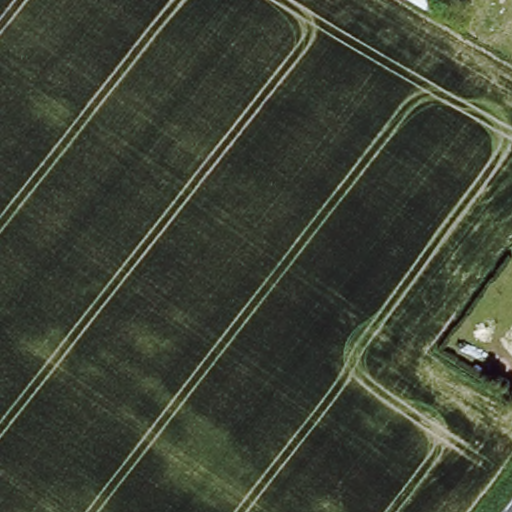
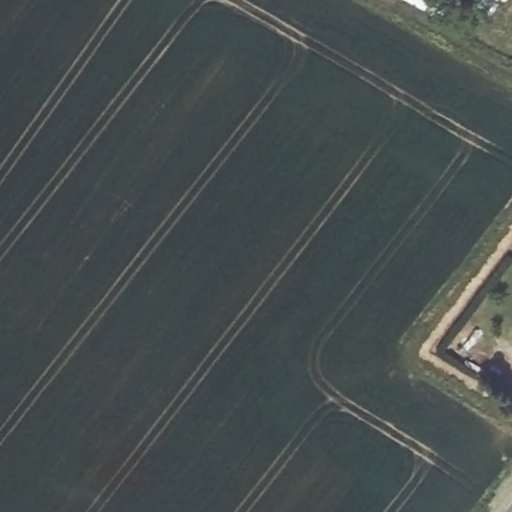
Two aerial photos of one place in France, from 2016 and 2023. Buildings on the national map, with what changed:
[]

